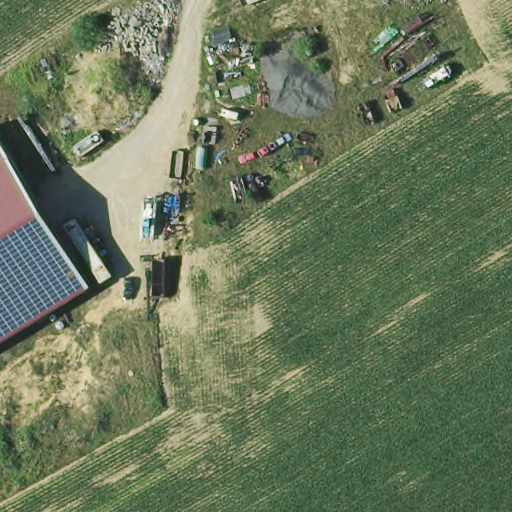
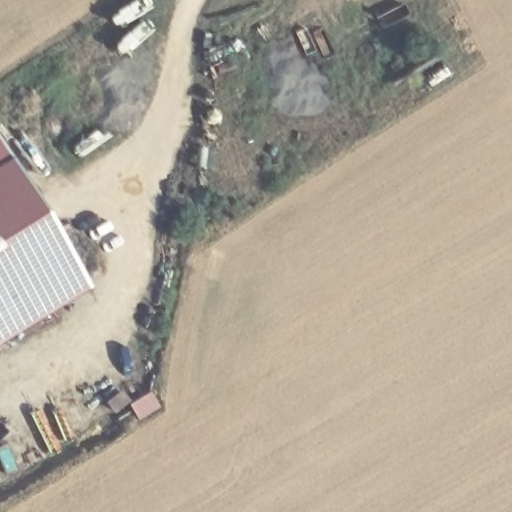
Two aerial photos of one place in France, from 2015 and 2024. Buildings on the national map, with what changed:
unchanged [(0,132),(88,281),(0,336),(0,132)]

